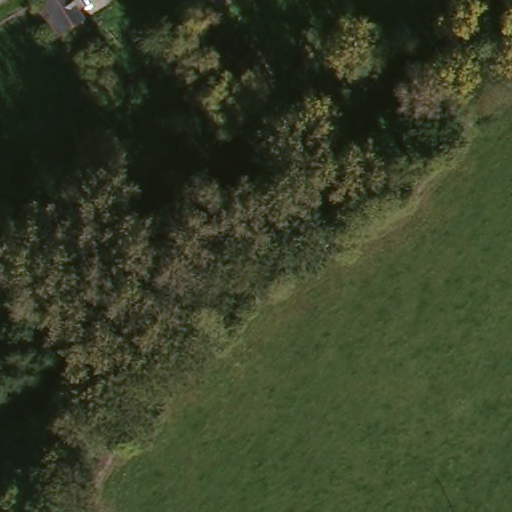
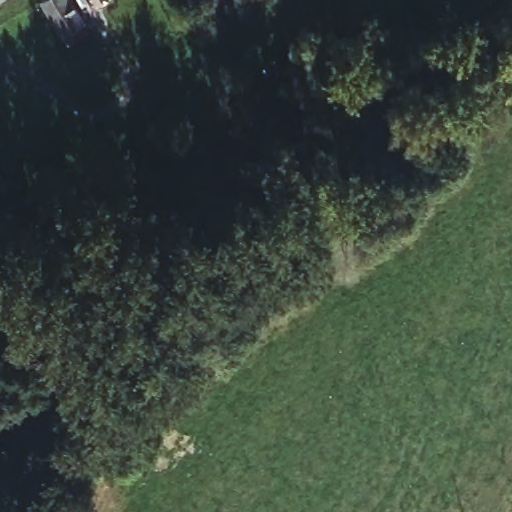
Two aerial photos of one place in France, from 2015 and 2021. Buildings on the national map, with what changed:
unchanged [(53,37),(37,8),(51,0),(66,0),(80,23),(53,37)]

